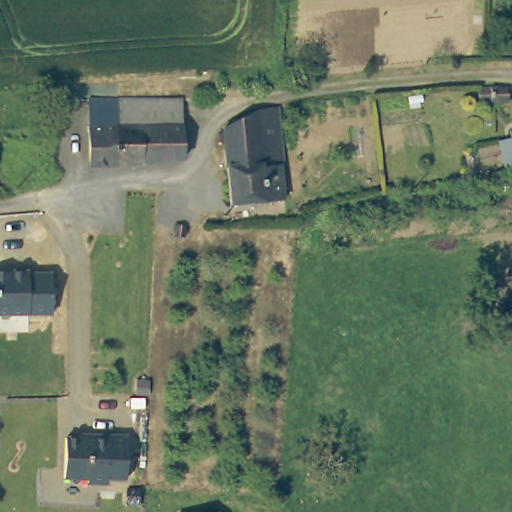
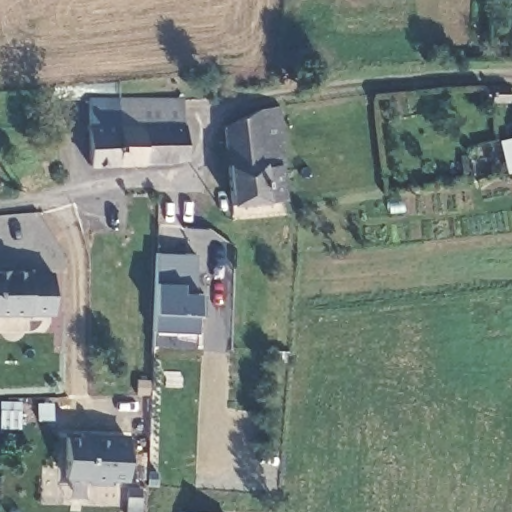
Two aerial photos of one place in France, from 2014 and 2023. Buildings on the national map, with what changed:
unchanged [(477,104),(477,92),(508,92),(507,106),(477,104)]
unchanged [(91,123),(91,98),(183,93),(183,120),(184,154),(169,160),(153,161),(145,161),(121,162),(94,164),(91,123)]
unchanged [(257,107),(276,100),(277,197),(229,200),(222,126),(239,115),(257,107)]
unchanged [(510,133),(512,133),(512,147),(510,133)]
demolished [(13,260),(9,222),(25,219),(30,259),(13,260)]
new [(155,252),(195,254),(194,281),(181,284),(181,293),(203,294),(202,317),(197,316),(197,333),(151,331),(155,252)]
unchanged [(52,271),(51,315),(26,315),(0,315),(0,271),(27,271),(52,271)]
unchanged [(81,438),(81,433),(128,434),(126,480),(108,481),(108,484),(87,484),(86,481),(64,479),(67,437),(81,438)]
unchanged [(175,511),(184,512),(175,512),(175,511)]

